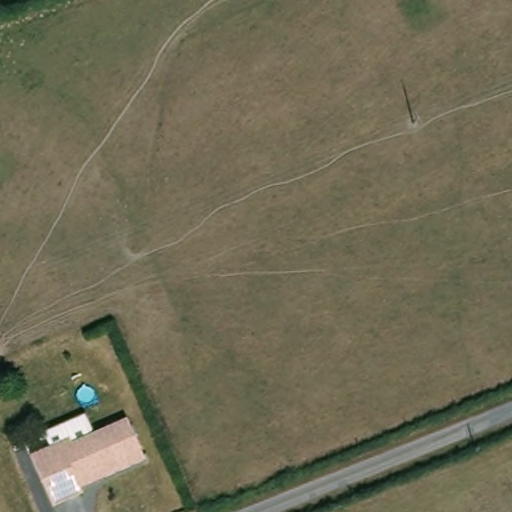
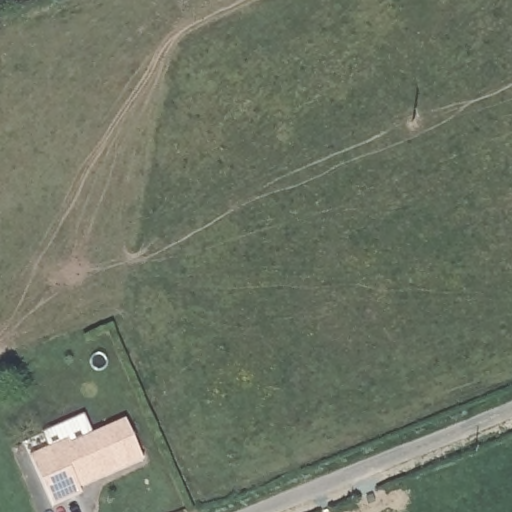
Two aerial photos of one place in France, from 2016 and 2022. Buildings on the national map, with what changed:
unchanged [(73,439),(75,444),(131,422),(147,464),(82,489),(84,494),(54,506),(34,454),(73,439)]

